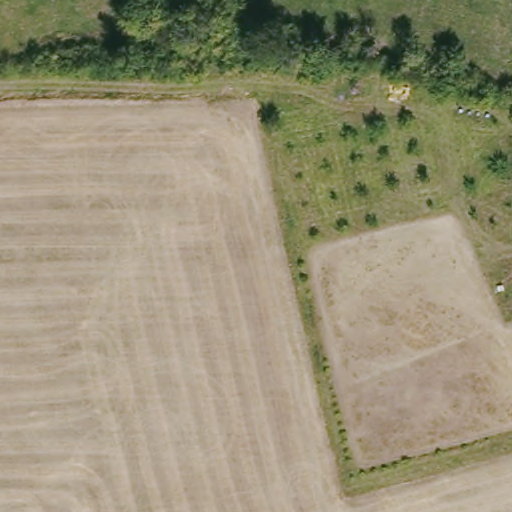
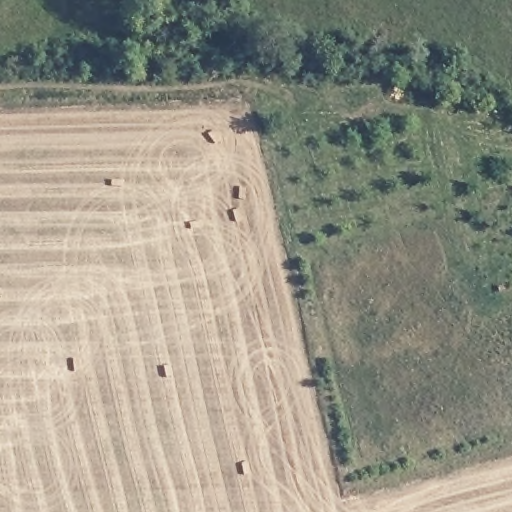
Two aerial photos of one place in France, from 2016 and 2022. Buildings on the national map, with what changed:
[]

